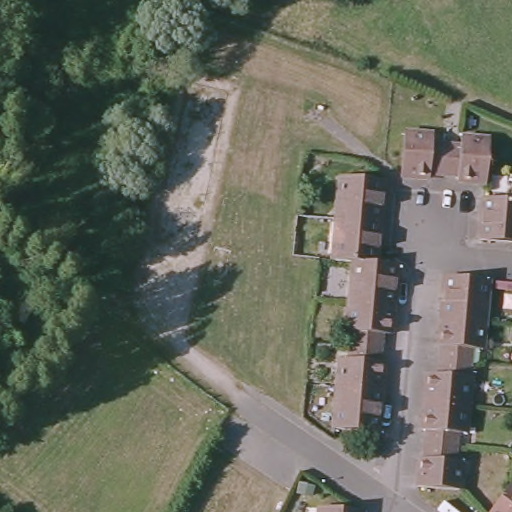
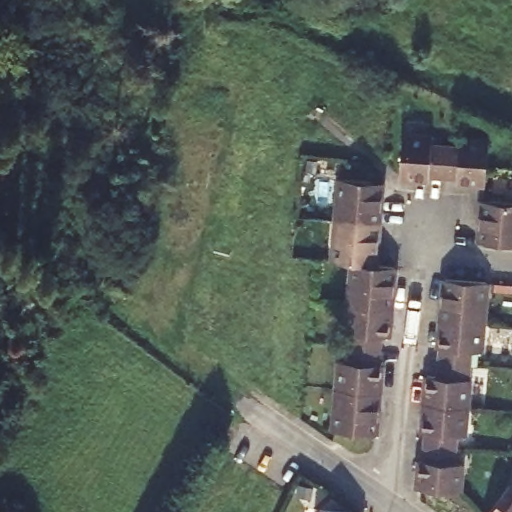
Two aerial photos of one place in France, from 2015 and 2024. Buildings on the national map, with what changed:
unchanged [(404,137),(430,139),(430,146),(444,147),(442,177),(429,176),(428,181),(424,181),(400,179),(404,137)]
unchanged [(459,148),(460,140),(487,142),(485,174),(484,185),(457,183),(457,178),(442,177),(444,147),(459,148)]
unchanged [(334,176),(376,179),(373,222),(330,218),(334,176)]
unchanged [(512,203),(512,244),(480,242),(482,201),(512,203)]
unchanged [(370,262),(347,260),(327,258),(330,218),(373,222),(370,262)]
unchanged [(345,294),(347,260),(370,262),(390,263),(387,301),(387,307),(344,303),(345,294)]
unchanged [(441,315),(445,275),(456,276),(487,279),(483,319),(441,315)]
unchanged [(387,307),(385,333),(375,333),(374,346),(345,344),(347,331),(342,330),(344,303),(387,307)]
unchanged [(483,319),(481,347),(470,345),(469,360),(440,358),(442,343),(439,343),(441,315),(483,319)]
unchanged [(334,358),(344,359),(345,344),(374,346),(372,361),(377,362),(375,388),(332,385),(334,358)]
unchanged [(428,371),(439,372),(440,364),(440,358),(469,360),(468,374),(471,374),(468,403),(426,399),(428,371)]
unchanged [(375,388),(371,431),(329,426),(332,385),(375,388)]
unchanged [(425,412),(425,404),(426,399),(468,403),(466,430),(457,429),(456,444),(426,442),(427,427),(424,427),(425,412)]
unchanged [(460,487),(442,486),(420,484),(422,457),(425,457),(426,442),(456,444),(454,459),(462,460),(461,489),(460,487)]
unchanged [(491,512),(511,483),(512,484),(512,512),(491,512)]
unchanged [(317,512),(317,510),(334,512),(317,512)]

